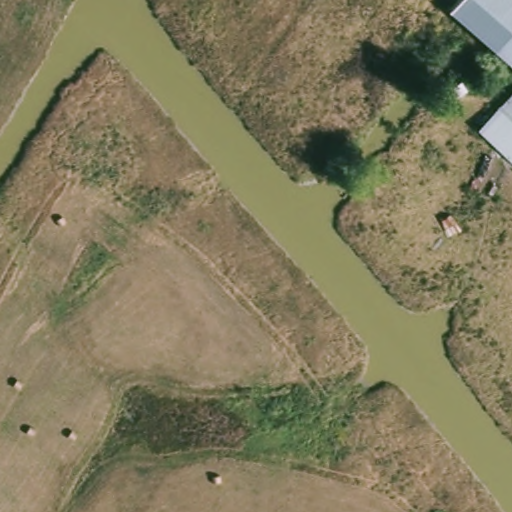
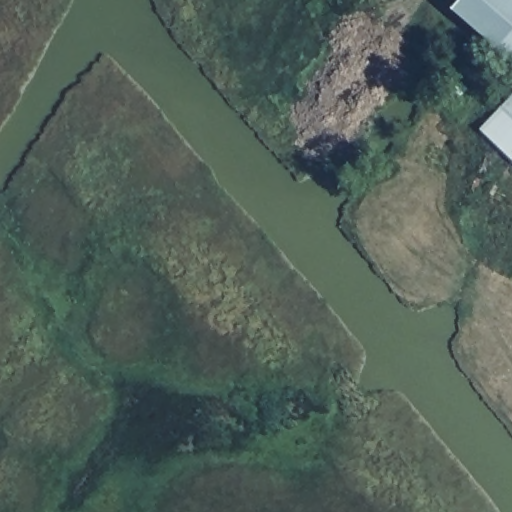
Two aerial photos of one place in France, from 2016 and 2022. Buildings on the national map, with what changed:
unchanged [(486,53),(446,24),(462,0),(512,0),(512,75),(486,53)]
unchanged [(512,94),(512,168),(476,133),(512,94)]

